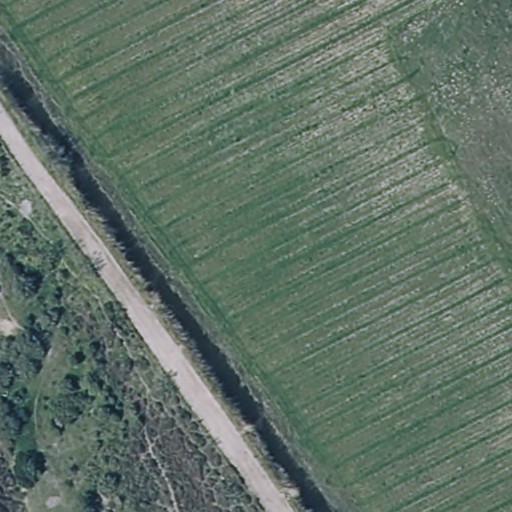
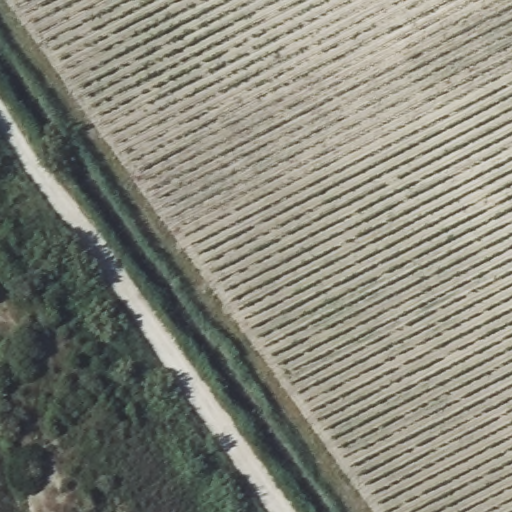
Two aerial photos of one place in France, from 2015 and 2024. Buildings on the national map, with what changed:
[]

